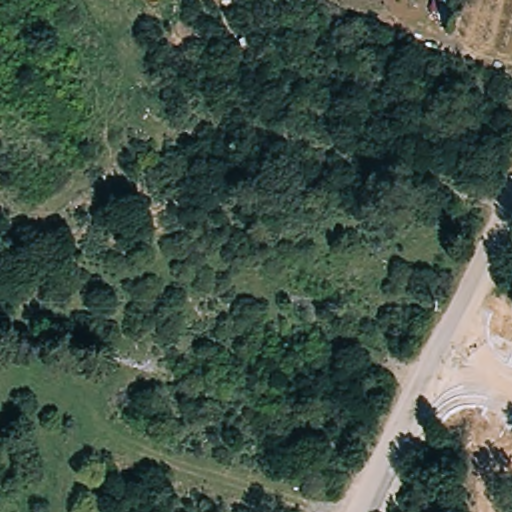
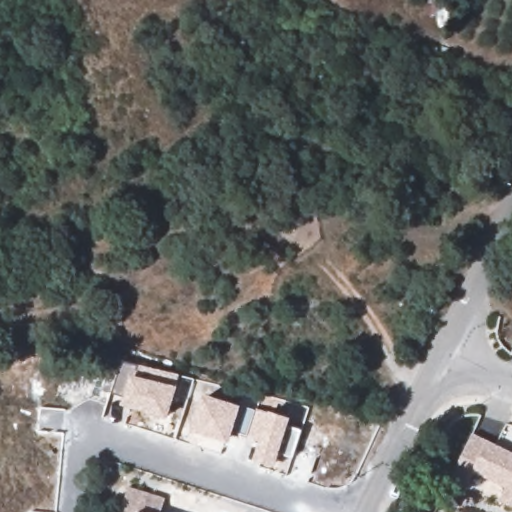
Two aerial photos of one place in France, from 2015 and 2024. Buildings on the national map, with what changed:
new [(180,375),(177,387),(179,387),(168,420),(122,407),(125,397),(113,394),(123,362),(180,375)]
new [(242,407),(257,411),(257,410),(270,414),(270,412),(292,419),(290,427),(303,431),(293,457),(281,453),(277,467),(255,460),(260,443),(249,439),(250,435),(235,432),(230,443),(192,432),(205,395),(242,407)]
new [(485,414),(512,428),(512,465),(484,450),(477,463),(476,462),(463,455),(485,414)]
new [(510,481),(512,477),(512,482),(510,481)]
new [(169,498),(164,512),(123,512),(132,486),(169,498)]

